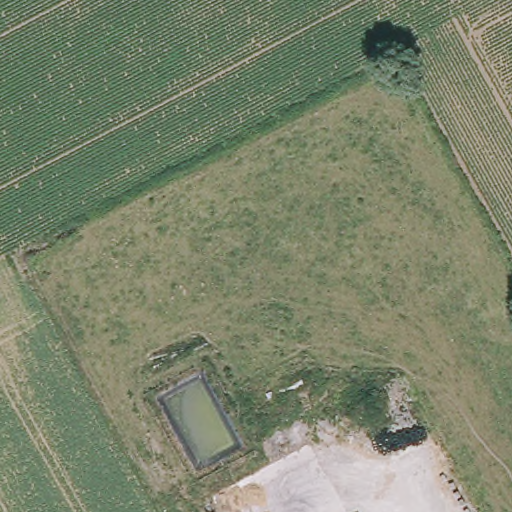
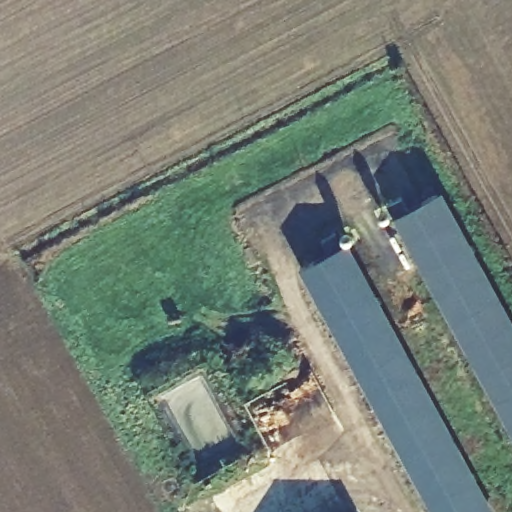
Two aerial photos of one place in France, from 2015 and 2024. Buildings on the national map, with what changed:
new [(401,214),(442,191),(512,317),(512,413),(401,214)]
new [(494,512),(434,512),(301,268),(350,242),(494,512)]

